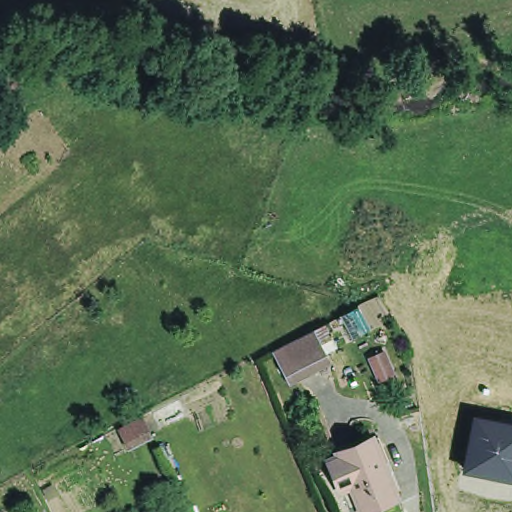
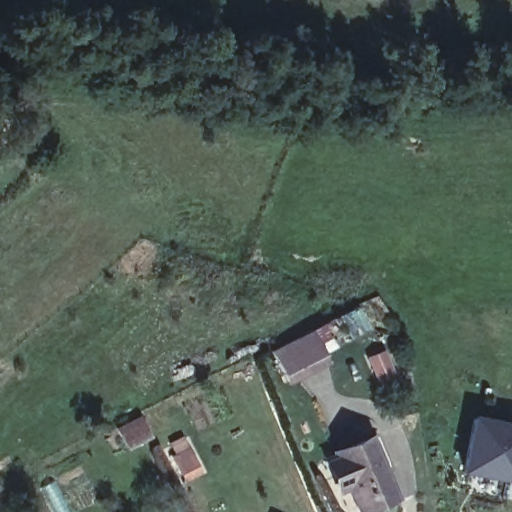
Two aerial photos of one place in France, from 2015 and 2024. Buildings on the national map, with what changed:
unchanged [(353,309),(365,333),(346,342),(334,319),(353,309)]
unchanged [(268,352),(320,326),(331,349),(280,375),(268,352)]
unchanged [(460,472),(471,414),(512,422),(512,482),(460,472)]
unchanged [(124,450),(113,429),(123,425),(137,418),(147,438),(124,450)]
unchanged [(340,456),(346,454),(350,451),(379,438),(389,433),(399,460),(395,462),(409,494),(392,502),(389,499),(372,507),(362,484),(353,488),(348,475),(340,456)]

